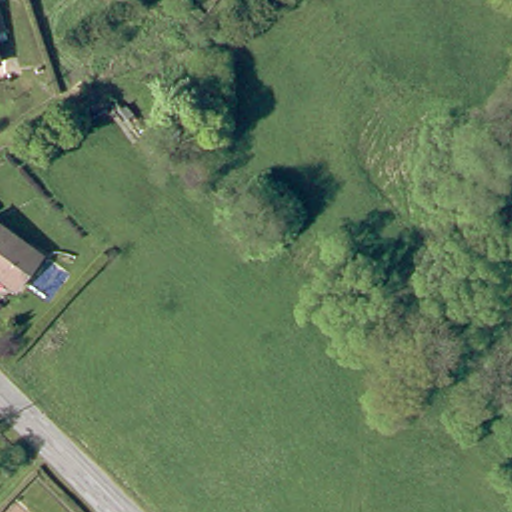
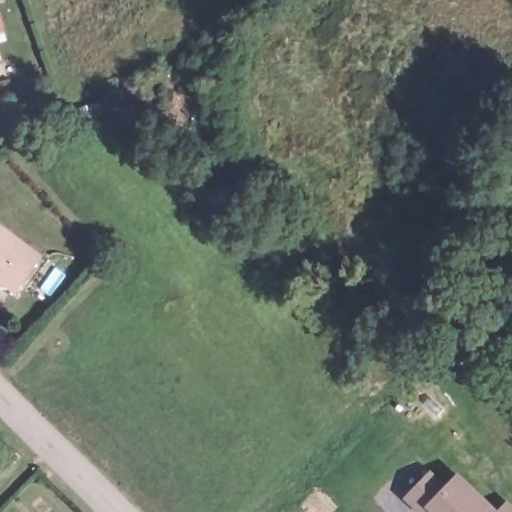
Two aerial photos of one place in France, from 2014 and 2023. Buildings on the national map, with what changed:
unchanged [(0,276),(0,225),(34,252),(9,283),(0,276)]
new [(457,474),(498,510),(508,501),(512,505),(512,512),(433,512),(411,490),(429,470),(445,485),(457,474)]

